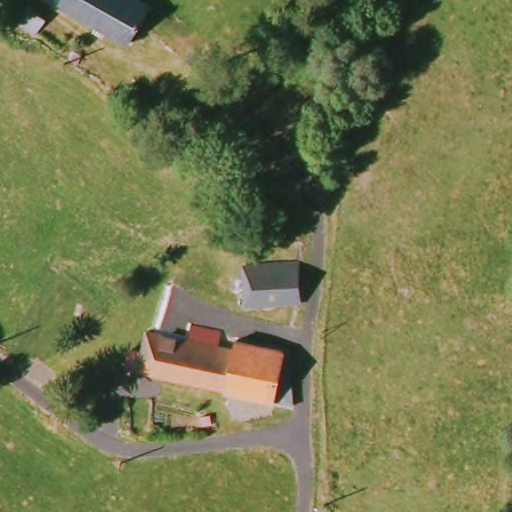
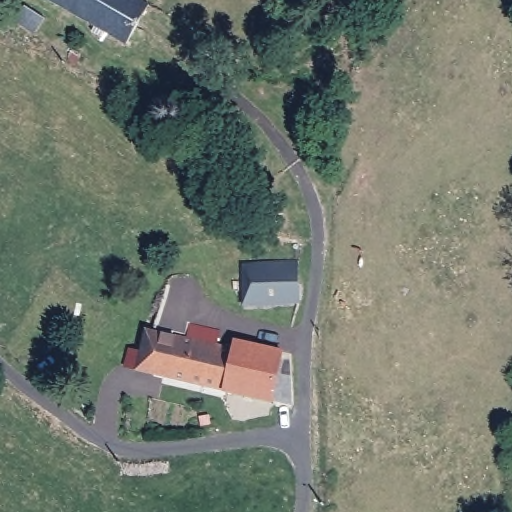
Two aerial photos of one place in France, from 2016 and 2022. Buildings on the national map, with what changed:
unchanged [(125,44),(49,0),(137,0),(145,4),(125,44)]
unchanged [(17,19),(28,4),(47,17),(37,32),(17,19)]
unchanged [(289,212),(285,225),(263,218),(266,206),(289,212)]
unchanged [(304,299),(247,304),(245,263),(300,258),(304,299)]
unchanged [(291,404),(121,366),(125,347),(140,349),(144,330),(183,339),(186,324),(217,328),(215,345),(230,348),(233,339),(281,348),(280,356),(289,358),(291,404)]

